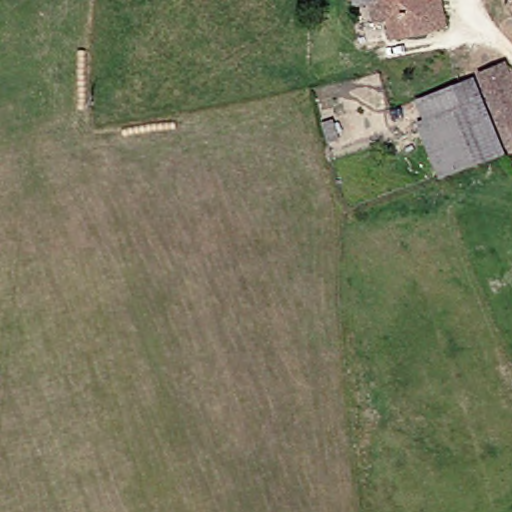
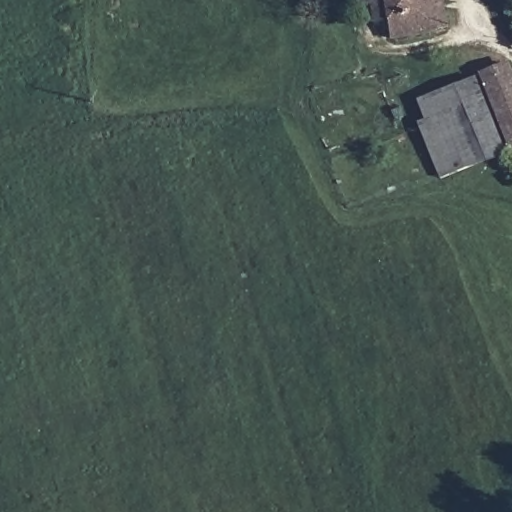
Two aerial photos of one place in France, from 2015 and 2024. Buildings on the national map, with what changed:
unchanged [(425,2),(444,0),(458,0),(462,23),(448,25),(445,19),(437,19),(439,29),(402,35),(396,1),(370,5),(369,0),(425,0),(425,2)]
unchanged [(425,2),(425,0),(444,0),(425,2)]
unchanged [(487,75),(512,64),(512,126),(487,75)]
unchanged [(425,124),(436,120),(426,102),(480,80),(512,152),(512,153),(451,181),(425,124)]

